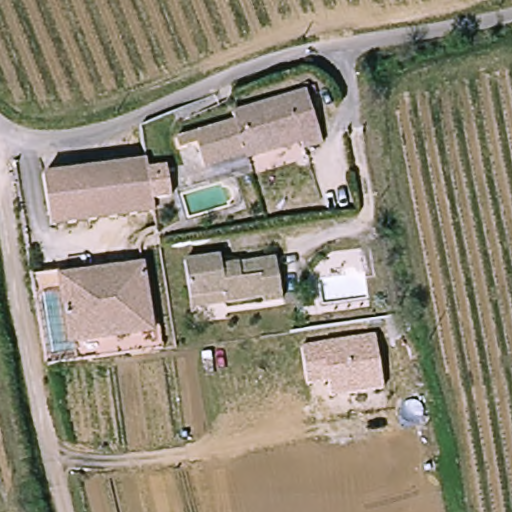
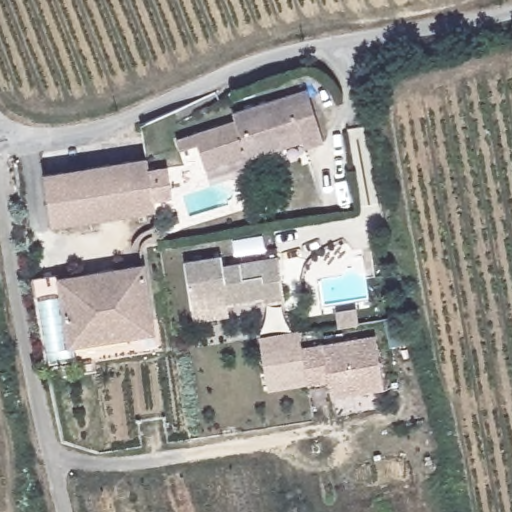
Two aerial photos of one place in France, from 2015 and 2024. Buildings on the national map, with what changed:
unchanged [(246,161),(245,156),(202,167),(196,144),(178,149),(175,139),(235,122),(233,115),(308,95),(322,147),(302,152),(301,146),(279,152),(246,161)]
unchanged [(170,172),(175,202),(156,205),(157,208),(158,217),(54,229),(46,181),(151,166),(152,175),(170,172)]
unchanged [(197,299),(192,262),(229,258),(230,268),(285,262),(290,303),(271,306),(270,301),(233,305),(198,309),(197,299)]
unchanged [(73,347),(65,277),(146,267),(157,335),(73,347)]
unchanged [(61,290),(70,352),(48,355),(39,293),(61,290)]
new [(303,348),(308,383),(268,392),(260,337),(299,332),(303,348)]
unchanged [(330,382),(308,383),(303,348),(322,345),(375,337),(382,392),(332,398),(330,382)]

